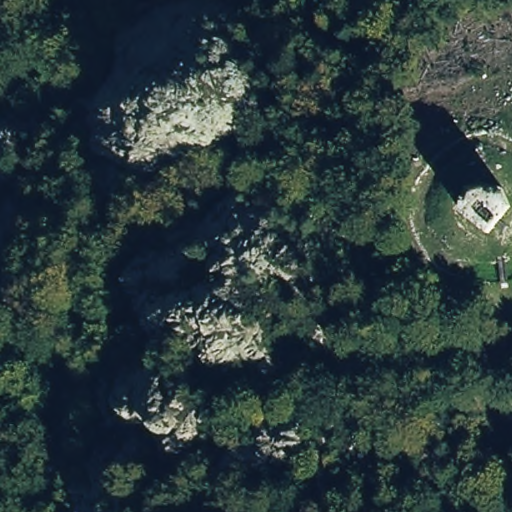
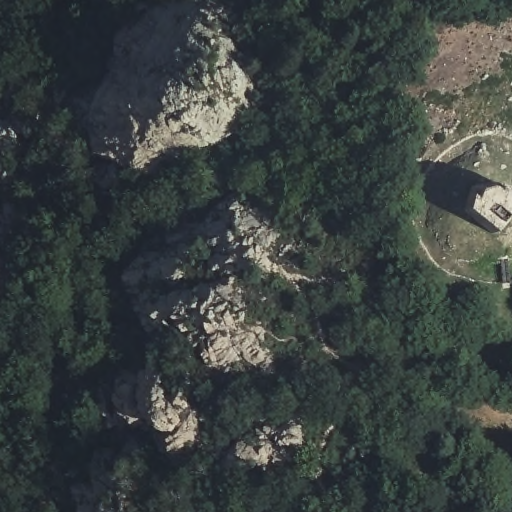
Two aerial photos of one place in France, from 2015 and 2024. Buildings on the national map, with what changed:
unchanged [(511,199),(512,201),(512,219),(499,234),(489,234),(472,224),(470,209),(481,192),(492,190),(511,199)]

